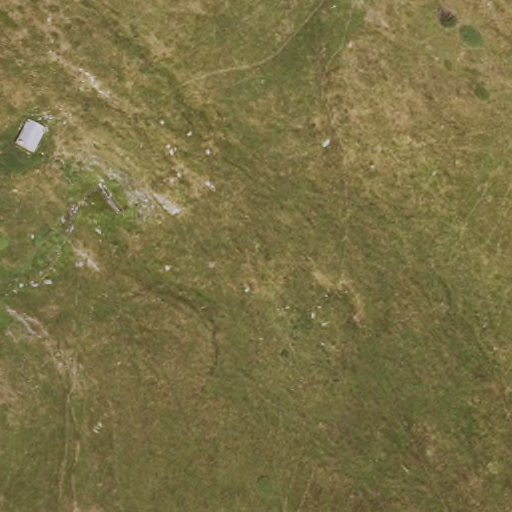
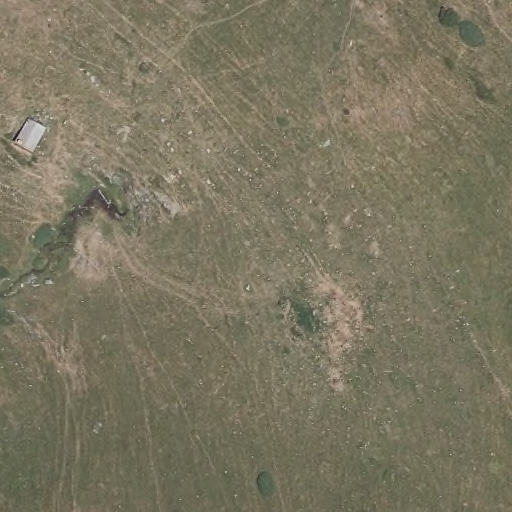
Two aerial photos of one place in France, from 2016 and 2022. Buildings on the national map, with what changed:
unchanged [(47,139),(42,148),(32,170),(10,159),(24,128),(47,139)]

